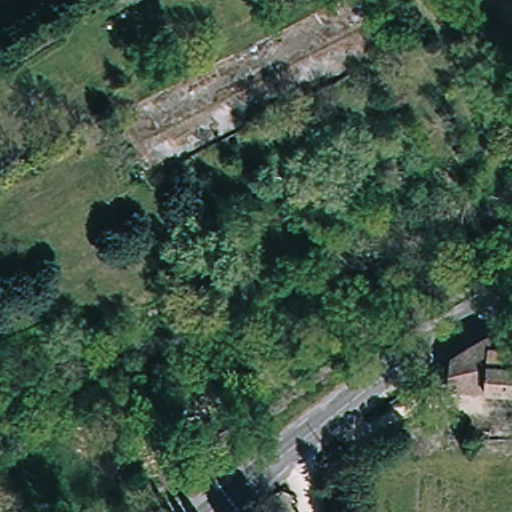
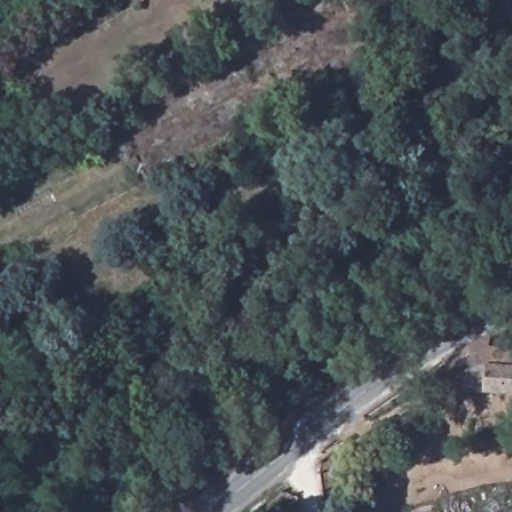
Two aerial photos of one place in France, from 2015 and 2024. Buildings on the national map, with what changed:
unchanged [(453,395),(456,367),(456,364),(494,343),(497,345),(496,355),(491,397),(453,395)]
unchanged [(512,356),(512,398),(491,397),(496,355),(512,356)]

